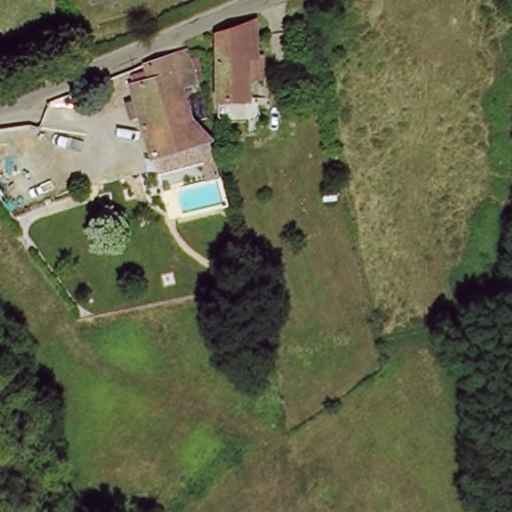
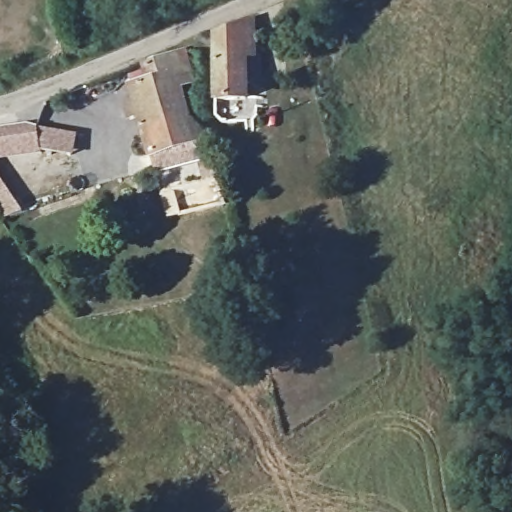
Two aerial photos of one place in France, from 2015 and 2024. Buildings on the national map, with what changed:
unchanged [(212,60),(211,34),(249,24),(250,31),(251,59),(251,60),(261,59),(262,76),(251,77),(251,84),(243,84),(243,101),(214,104),(212,60)]
unchanged [(195,85),(179,89),(184,108),(185,112),(209,144),(201,146),(191,149),(185,124),(140,135),(135,116),(126,86),(146,82),(142,63),(187,52),(192,71),(193,78),(195,85)]
new [(24,124),(77,132),(73,156),(52,154),(0,160),(0,127),(24,124)]
unchanged [(185,124),(191,149),(168,154),(146,160),(140,135),(185,124)]
new [(23,214),(5,222),(0,216),(0,176),(23,214)]

